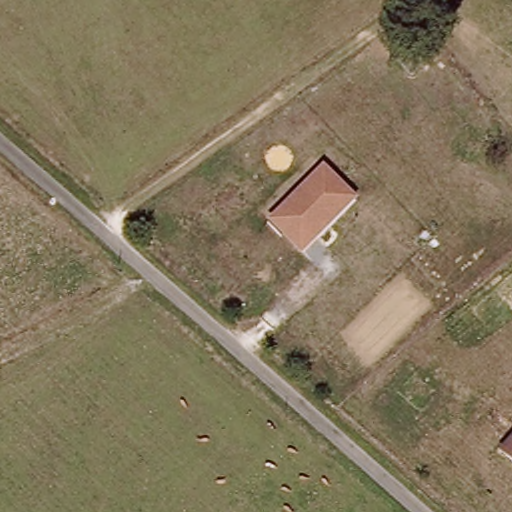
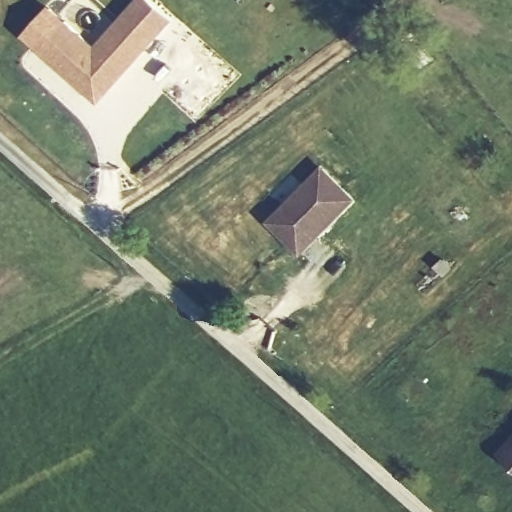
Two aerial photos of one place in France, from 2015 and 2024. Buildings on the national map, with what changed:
new [(136,0),(155,0),(175,18),(99,101),(23,34),(51,3),(96,44),(136,0)]
unchanged [(357,196),(321,231),(324,234),(300,254),(268,220),(324,162),(357,196)]
unchanged [(512,446),(512,458),(505,454),(512,446)]

